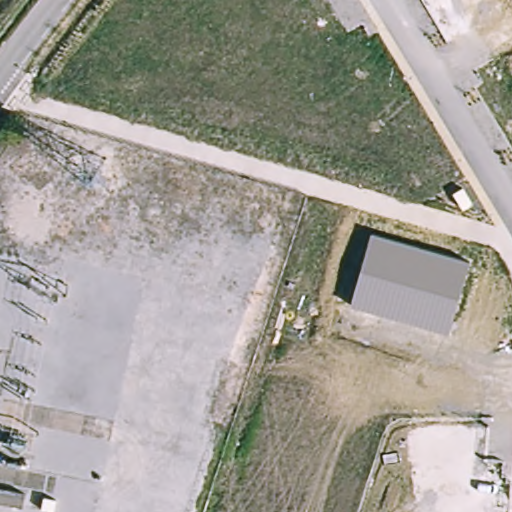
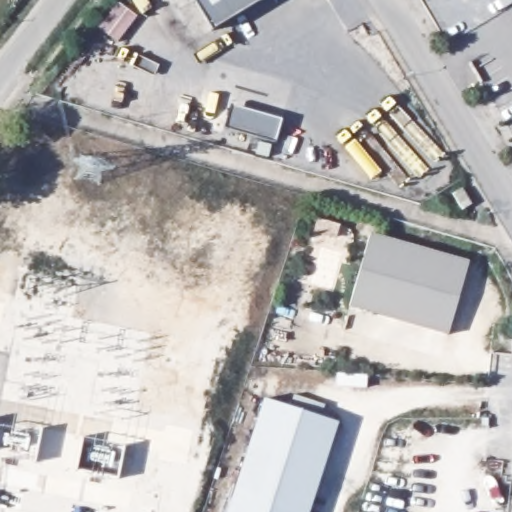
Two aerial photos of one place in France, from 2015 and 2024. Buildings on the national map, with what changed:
new [(260,0),(212,30),(193,0),(260,0)]
new [(280,118),(274,140),(222,128),(230,103),(280,118)]
unchanged [(449,333),(352,307),(370,234),(470,264),(449,333)]
new [(267,391),(340,411),(311,512),(232,512),(267,391)]

